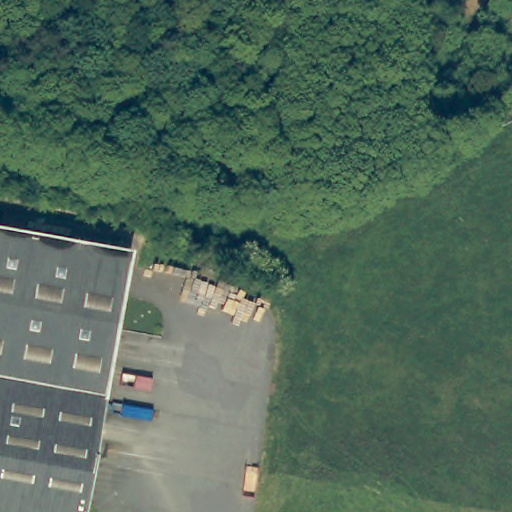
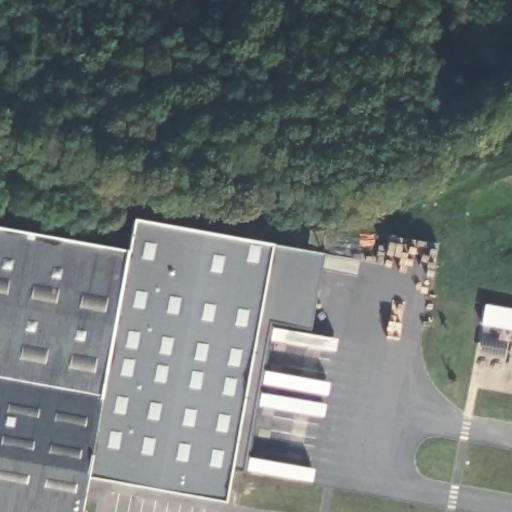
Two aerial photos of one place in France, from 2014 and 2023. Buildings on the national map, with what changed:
new [(132,255),(126,254),(133,220),(271,245),(322,254),(309,330),(256,321),(230,469),(225,501),(92,477),(132,255)]
unchanged [(132,255),(85,512),(0,512),(0,231),(132,255)]

